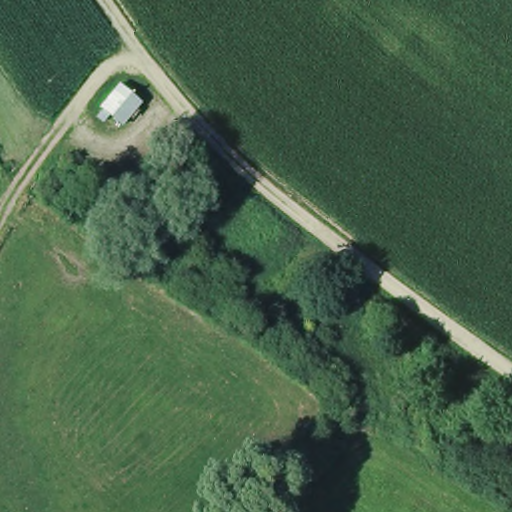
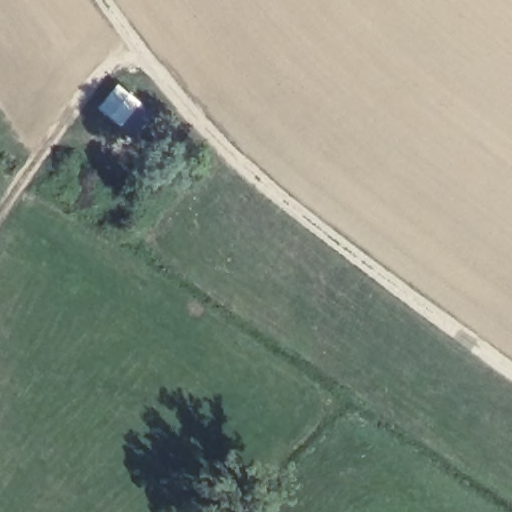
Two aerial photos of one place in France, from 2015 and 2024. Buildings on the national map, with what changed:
unchanged [(100,112),(117,81),(146,100),(127,132),(100,112)]

